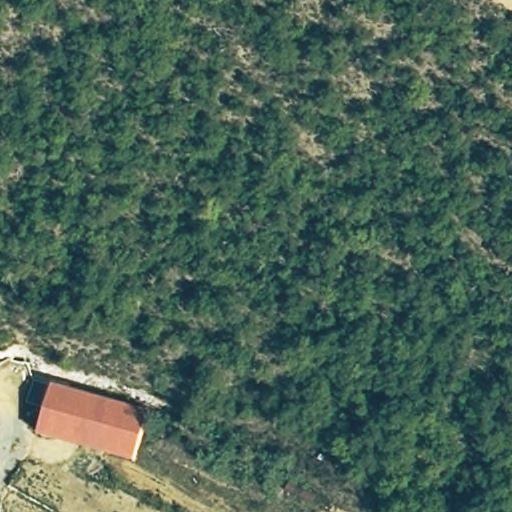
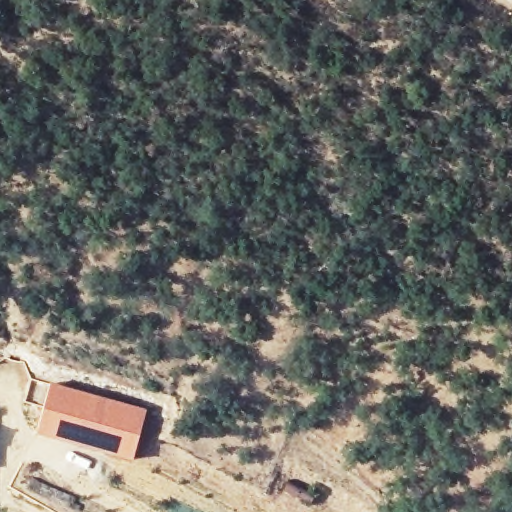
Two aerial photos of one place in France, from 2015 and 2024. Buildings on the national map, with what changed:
unchanged [(36,429),(53,382),(148,416),(135,450),(131,463),(96,451),(36,429)]

